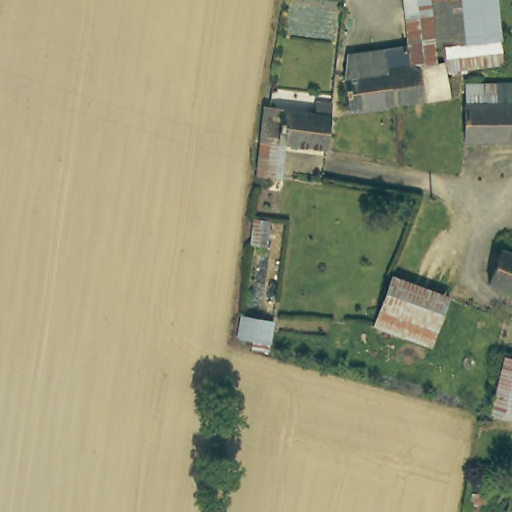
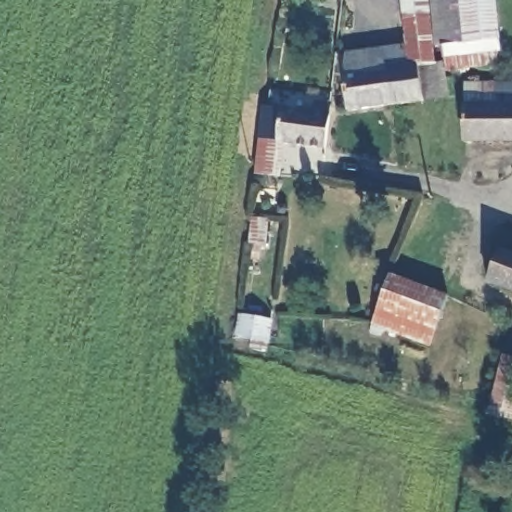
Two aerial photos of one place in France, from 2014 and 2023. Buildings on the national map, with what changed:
unchanged [(411,31),(408,0),(435,0),(438,37),(428,38),(428,30),(411,31)]
unchanged [(512,56),(464,62),(461,42),(452,44),(446,0),(509,0),(512,24),(512,56)]
unchanged [(438,37),(441,62),(400,64),(401,102),(357,105),(352,51),(430,44),(428,38),(438,37)]
unchanged [(401,102),(400,64),(441,62),(451,62),(455,101),(401,102)]
unchanged [(512,129),(470,128),(470,92),(512,93),(512,129)]
unchanged [(260,173),(263,142),(266,110),(301,114),(302,104),(333,107),(329,151),(282,145),(280,175),(260,173)]
unchanged [(278,240),(266,239),(270,215),(280,217),(278,240)]
unchanged [(512,252),(512,289),(491,281),(502,249),(512,252)]
unchanged [(435,341),(375,324),(389,276),(448,292),(435,341)]
unchanged [(505,355),(512,356),(512,415),(492,411),(505,355)]

